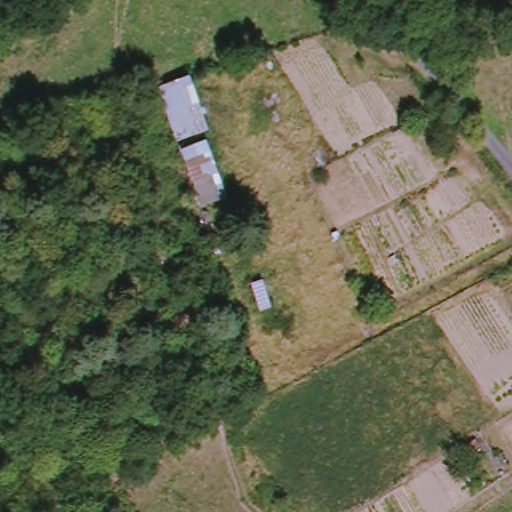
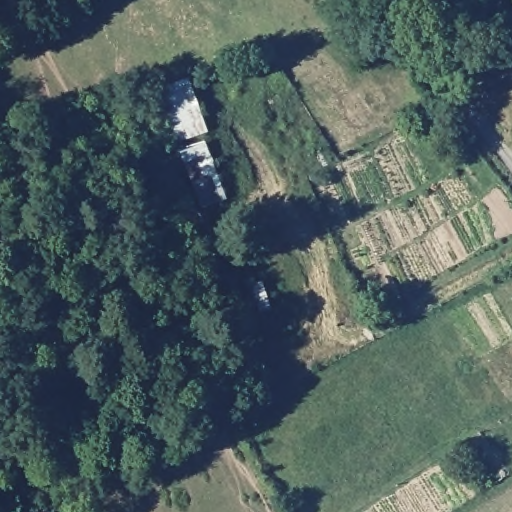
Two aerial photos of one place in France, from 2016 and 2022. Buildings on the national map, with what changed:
unchanged [(213,132),(183,145),(162,91),(192,80),(213,132)]
unchanged [(211,181),(223,206),(202,211),(182,153),(212,143),(225,180),(211,181)]

